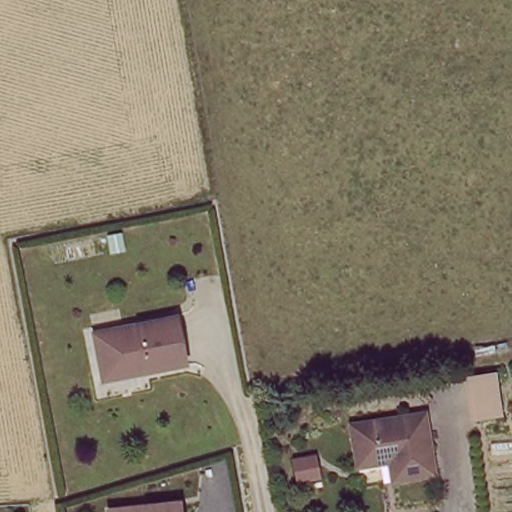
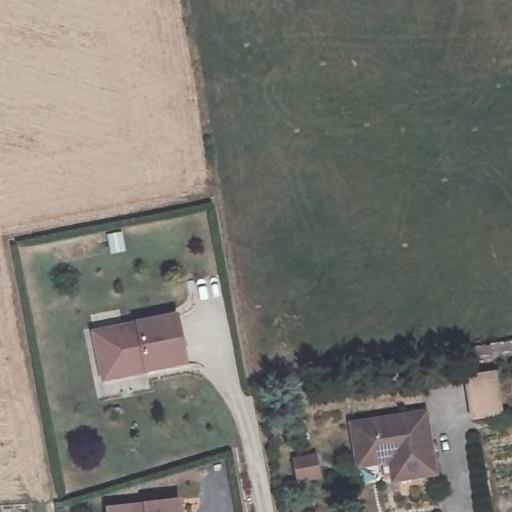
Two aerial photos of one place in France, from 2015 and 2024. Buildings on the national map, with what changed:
unchanged [(181,365),(104,378),(96,333),(175,318),(181,365)]
unchanged [(496,376),(501,415),(477,418),(471,380),(496,376)]
unchanged [(439,475),(397,480),(392,462),(365,466),(359,428),(430,416),(439,475)]
unchanged [(110,512),(110,508),(178,503),(178,512),(110,512)]

